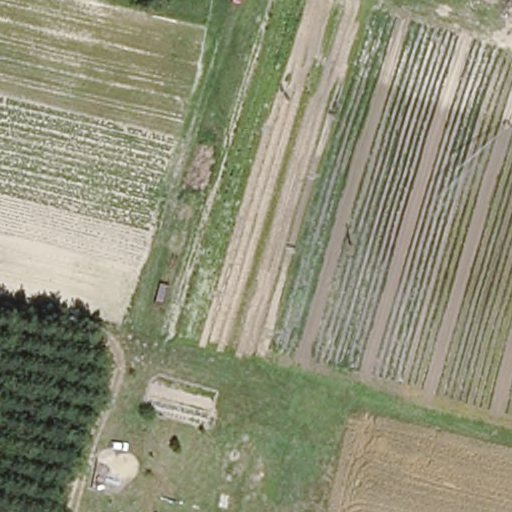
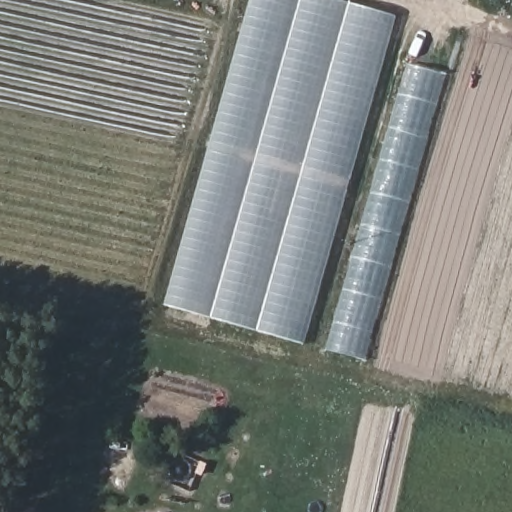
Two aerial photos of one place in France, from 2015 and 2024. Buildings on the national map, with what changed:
new [(250,0),(339,0),(397,17),(306,343),(165,305),(250,0)]
unchanged [(439,0),(498,0),(495,12),(439,0)]
new [(449,75),(367,360),(325,349),(406,64),(449,75)]

